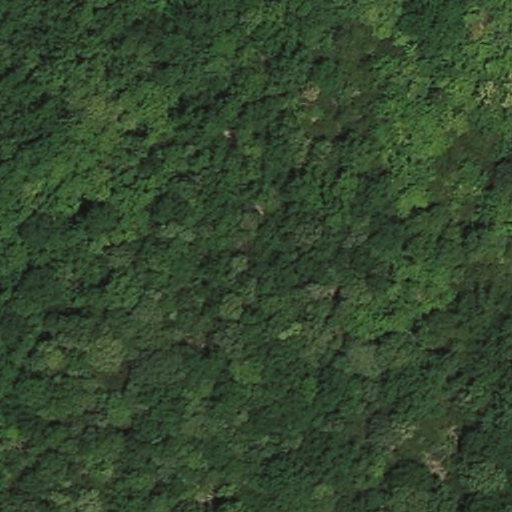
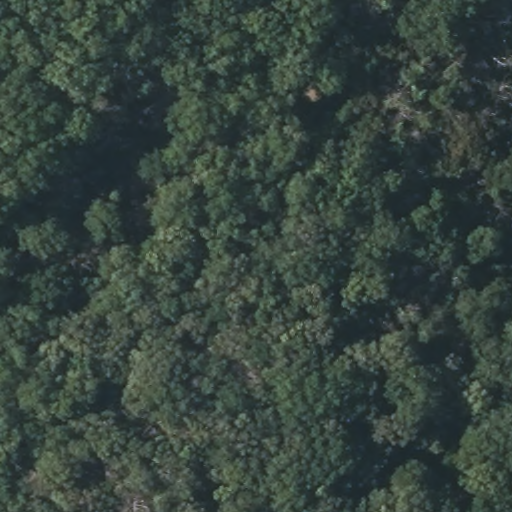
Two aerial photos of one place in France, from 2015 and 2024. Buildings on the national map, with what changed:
[]

